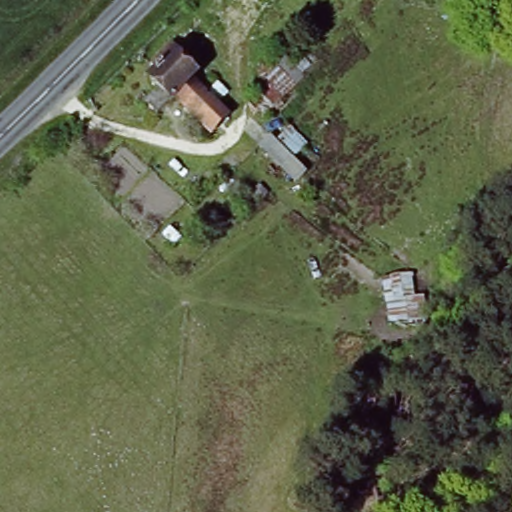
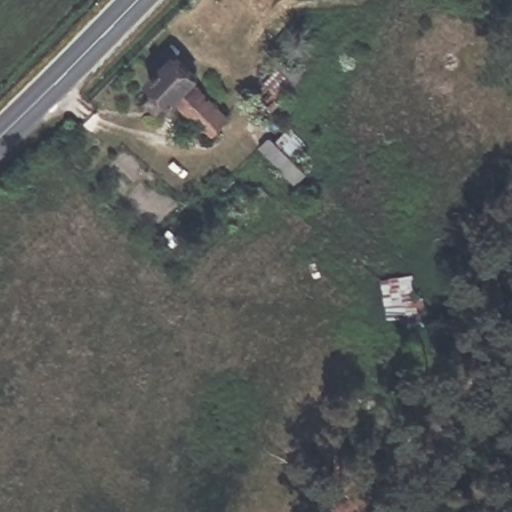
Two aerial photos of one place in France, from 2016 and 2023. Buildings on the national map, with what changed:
unchanged [(177,98),(161,115),(148,102),(161,89),(155,83),(159,79),(153,72),(177,49),(182,54),(178,57),(198,77),(195,81),(230,115),(212,133),(177,98)]
unchanged [(257,125),(243,111),(264,90),(278,105),(257,125)]
unchanged [(413,275),(417,296),(427,294),(432,323),(393,331),(384,280),(413,275)]

